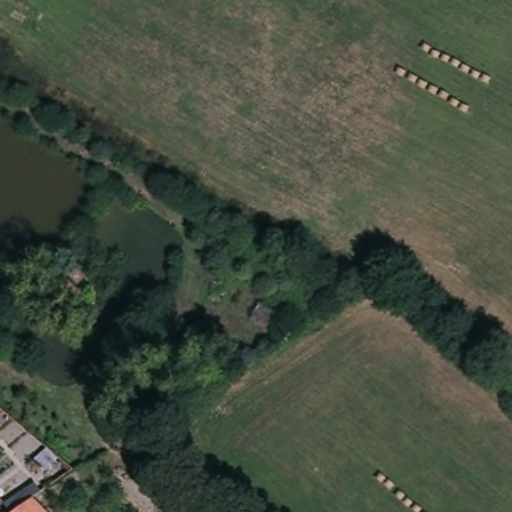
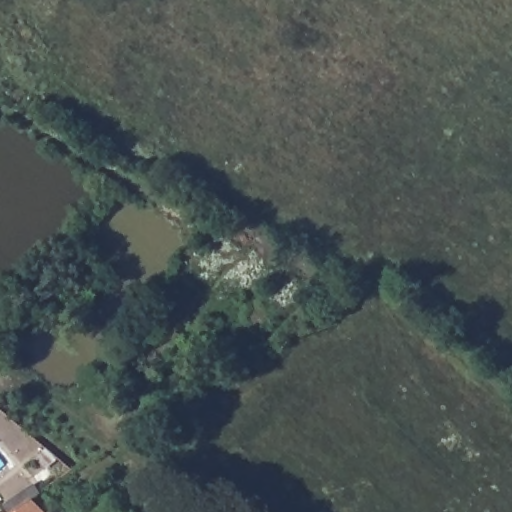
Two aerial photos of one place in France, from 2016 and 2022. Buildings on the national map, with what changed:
unchanged [(68,280),(87,295),(75,307),(57,291),(68,280)]
unchanged [(250,311),(267,303),(280,316),(263,328),(250,311)]
unchanged [(35,498),(48,512),(15,512),(35,498)]

